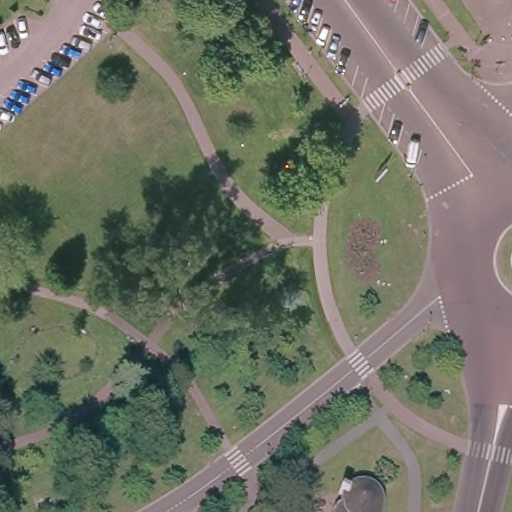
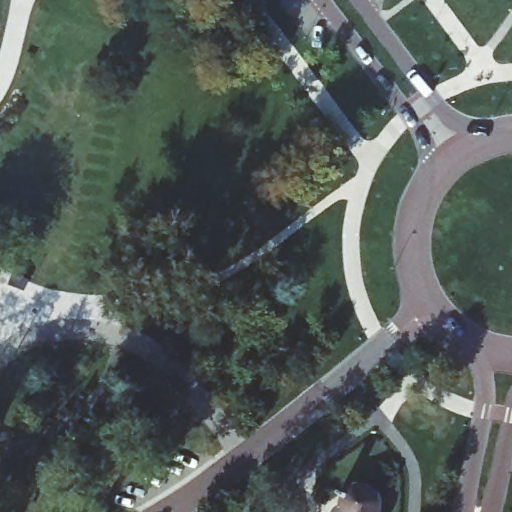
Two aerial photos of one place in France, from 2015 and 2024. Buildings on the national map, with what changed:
unchanged [(354,504),(351,492),(350,485),(339,481),(340,475),(351,476),(352,475),(352,474),(354,473),(356,472),(357,471),(359,471),(361,470),(363,470),(365,470),(367,470),(368,470),(370,471),(372,471),(374,472),(376,473),(377,474),(378,476),(380,477),(381,479),(382,480),(382,482),(383,484),(383,486),(383,488),(383,490),(381,512),(353,512),(354,504)]

